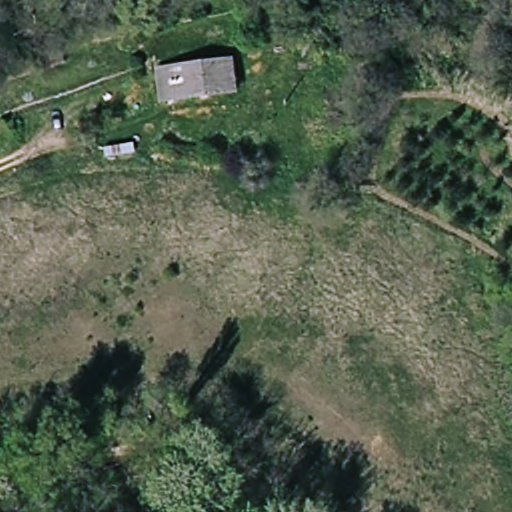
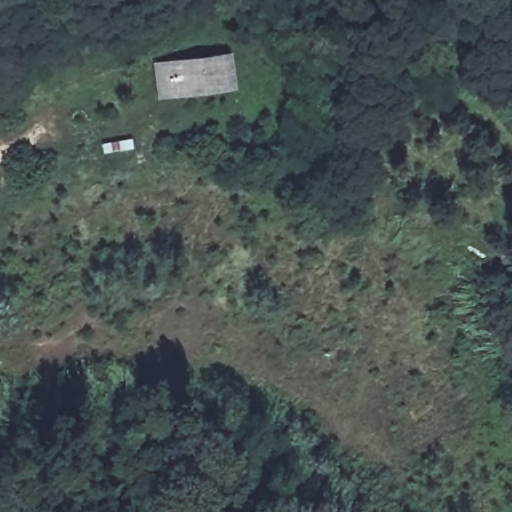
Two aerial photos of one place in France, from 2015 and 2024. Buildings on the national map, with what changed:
unchanged [(164,97),(159,65),(235,55),(239,86),(164,97)]

